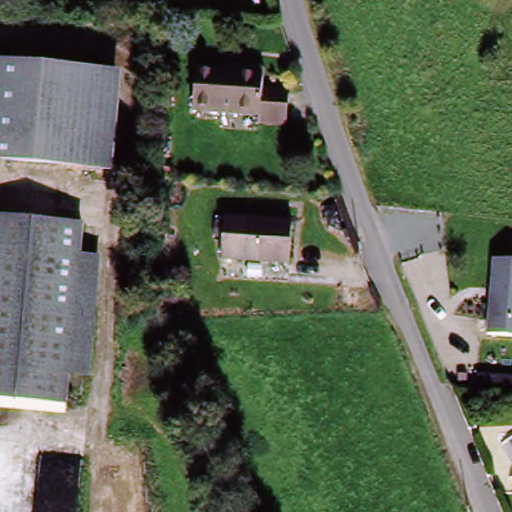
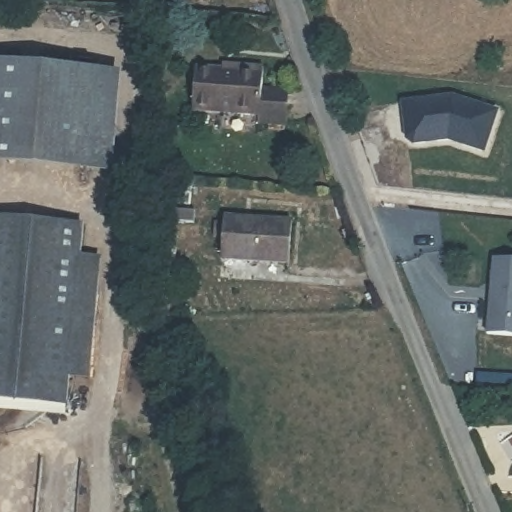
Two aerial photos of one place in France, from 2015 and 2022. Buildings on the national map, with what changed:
unchanged [(105,166),(0,159),(0,67),(112,74),(105,166)]
unchanged [(289,134),(263,133),(261,126),(196,122),(196,77),(226,76),(227,70),(264,73),(264,93),(289,95),(289,134)]
new [(449,99),(496,112),(484,155),(447,145),(411,151),(404,146),(398,109),(449,99)]
unchanged [(81,258),(103,261),(90,382),(73,379),(67,419),(0,413),(0,219),(83,228),(81,258)]
unchanged [(286,270),(221,266),(223,223),(288,227),(286,270)]
unchanged [(481,353),(483,320),(486,321),(487,309),(483,309),(489,265),(512,265),(512,354),(481,353)]

